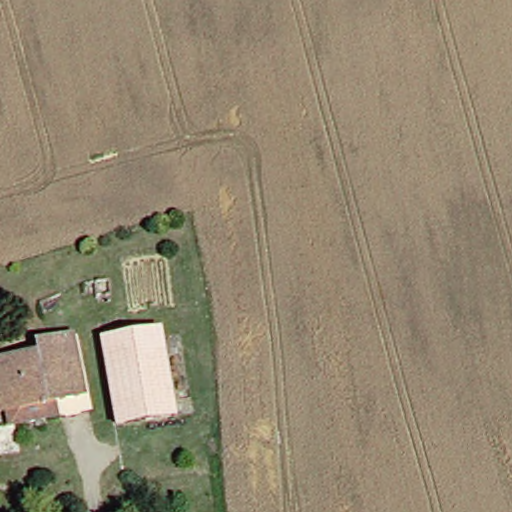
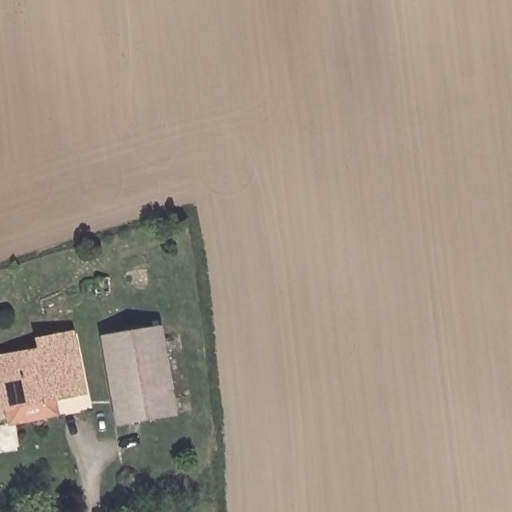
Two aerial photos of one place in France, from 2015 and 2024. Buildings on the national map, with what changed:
unchanged [(112,398),(96,336),(151,321),(167,384),(112,398)]
unchanged [(0,355),(10,352),(7,341),(45,332),(59,391),(30,399),(35,416),(0,426),(0,355)]
unchanged [(172,409),(119,423),(112,398),(167,384),(172,409)]

